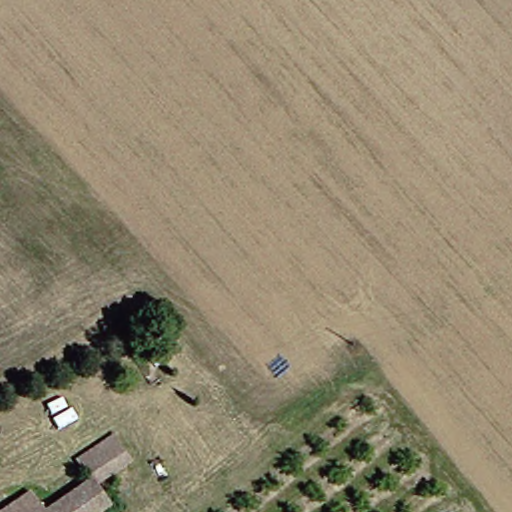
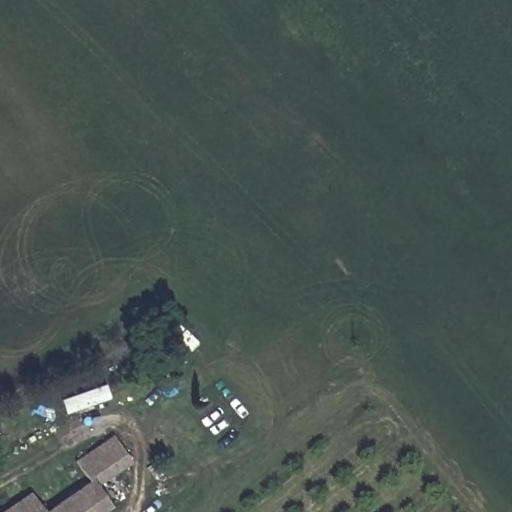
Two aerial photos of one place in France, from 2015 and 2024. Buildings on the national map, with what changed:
unchanged [(88,459),(121,436),(137,460),(102,485),(99,481),(88,459)]
unchanged [(119,511),(118,512),(55,512),(99,481),(102,485),(119,511)]
unchanged [(39,495),(51,512),(15,512),(39,495)]

